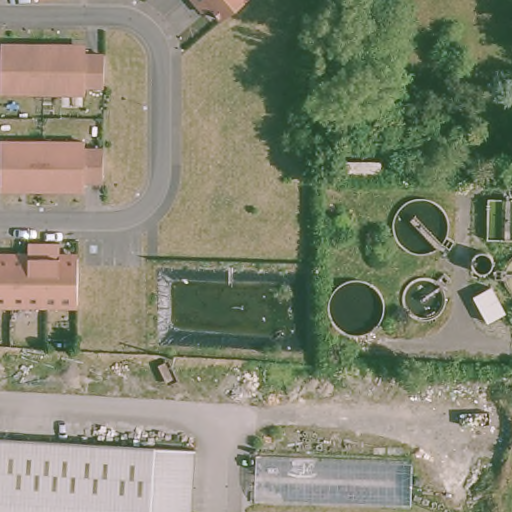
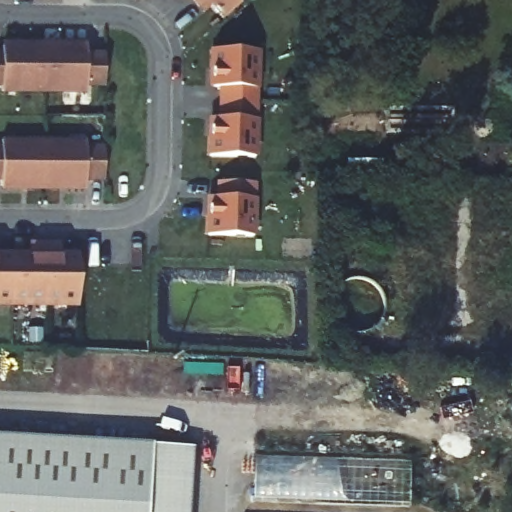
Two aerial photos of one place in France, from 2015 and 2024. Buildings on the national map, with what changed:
unchanged [(222,24),(205,4),(197,11),(189,0),(250,0),(222,24)]
unchanged [(24,47),(57,48),(57,50),(84,51),(84,57),(103,58),(102,89),(82,89),(82,97),(0,97),(0,50),(24,50),(24,47)]
new [(217,107),(218,91),(211,91),(212,73),(209,73),(210,53),(255,54),(254,108),(217,107)]
new [(207,160),(207,141),(210,141),(211,122),(217,122),(217,107),(254,108),(252,161),(207,160)]
unchanged [(82,155),(101,155),(100,188),(82,187),(81,195),(24,195),(24,193),(0,193),(0,147),(82,148),(82,155)]
new [(205,239),(206,220),(208,220),(209,201),(216,201),(216,186),(252,187),(251,240),(205,239)]
unchanged [(0,265),(23,265),(25,252),(56,253),(55,266),(75,266),(74,315),(0,315),(0,265)]
unchanged [(0,512),(0,439),(191,447),(188,512),(0,512)]
unchanged [(407,458),(407,504),(252,496),(254,456),(407,458)]

